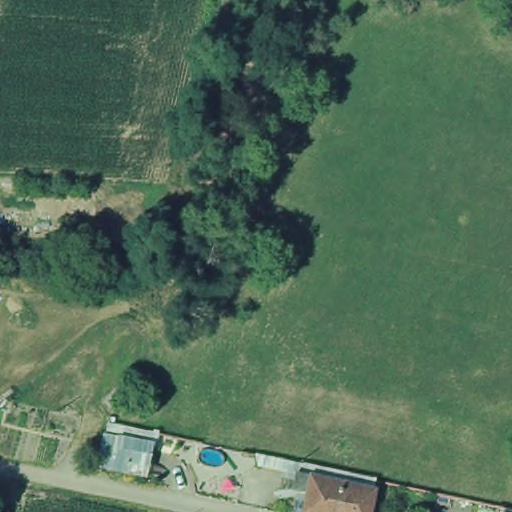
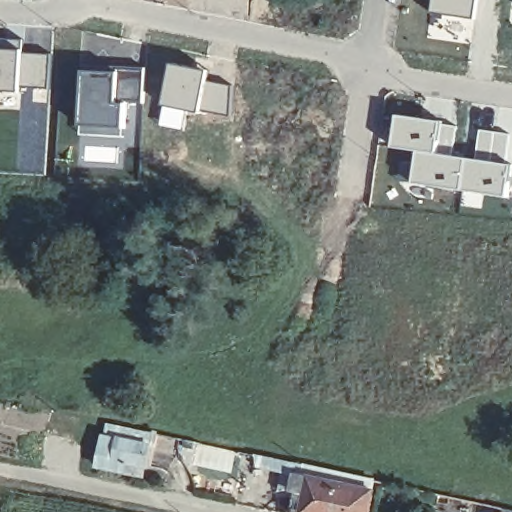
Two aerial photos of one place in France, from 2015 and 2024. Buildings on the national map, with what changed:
new [(434,0),(480,0),(476,20),(432,12),(434,0)]
new [(50,90),(22,89),(22,95),(0,94),(0,39),(23,39),(25,56),(51,55),(50,90)]
new [(211,74),(209,82),(232,87),(231,116),(189,112),(184,130),(164,129),(162,128),(172,64),(211,74)]
new [(145,106),(128,104),(127,137),(83,136),(83,74),(120,77),(120,70),(145,69),(145,106)]
new [(400,114),(459,125),(455,154),(417,151),(395,147),(400,114)]
new [(475,157),(480,128),(512,133),(512,142),(509,162),(512,162),(512,175),(508,197),(413,182),(417,151),(455,154),(475,157)]
unchanged [(142,476),(116,470),(90,465),(96,435),(139,444),(148,446),(142,476)]
unchanged [(278,493),(282,477),(295,480),(360,494),(356,512),(281,512),(285,495),(278,493)]

